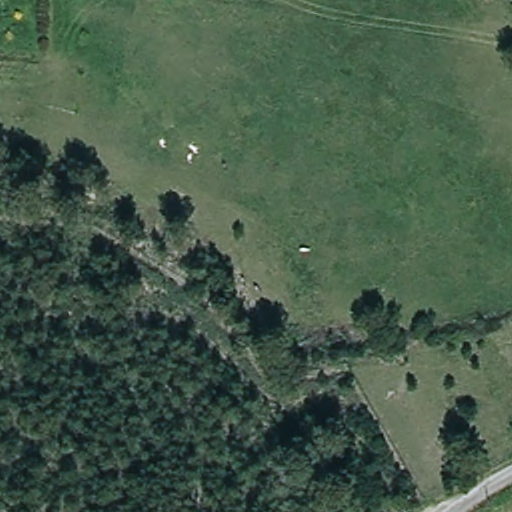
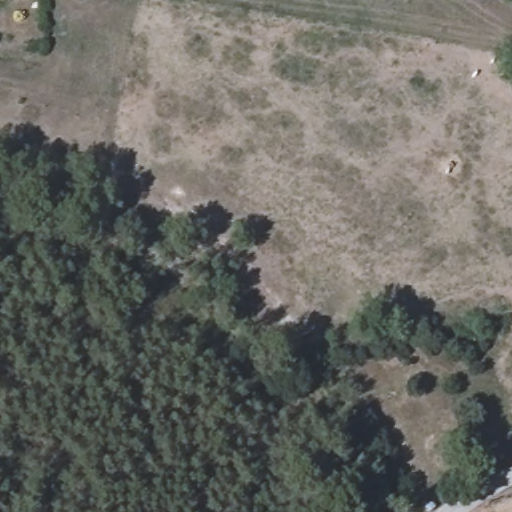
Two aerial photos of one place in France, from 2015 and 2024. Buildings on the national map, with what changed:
[]

